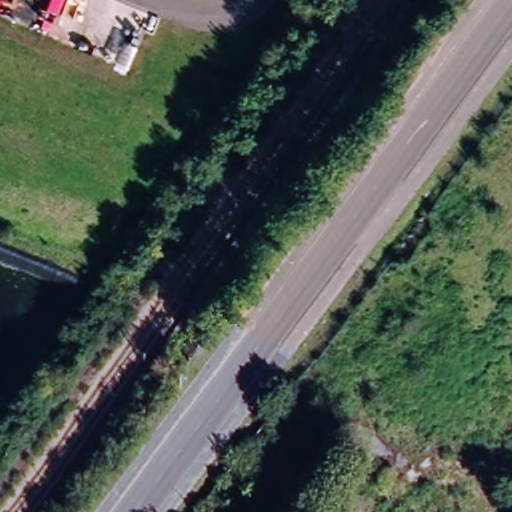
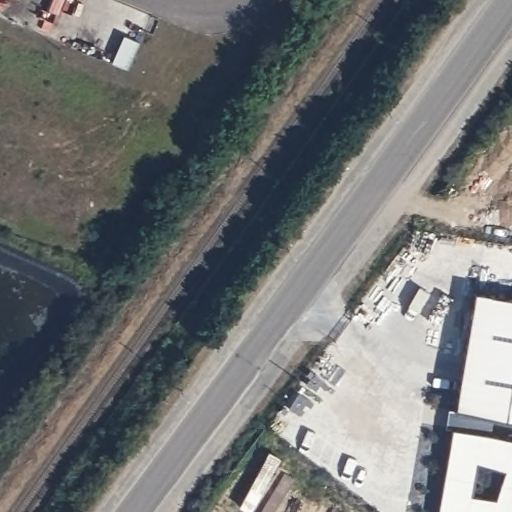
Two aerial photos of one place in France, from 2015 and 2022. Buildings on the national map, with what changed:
new [(473,290),(512,297),(512,420),(454,410),(473,290)]
new [(447,409),(492,416),(490,434),(512,438),(512,512),(438,512),(451,427),(445,426),(447,409)]

